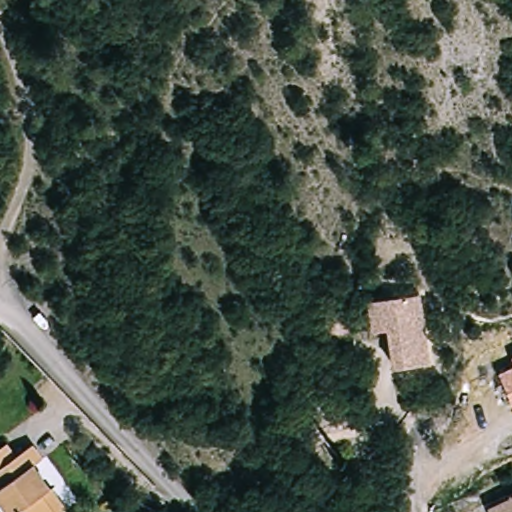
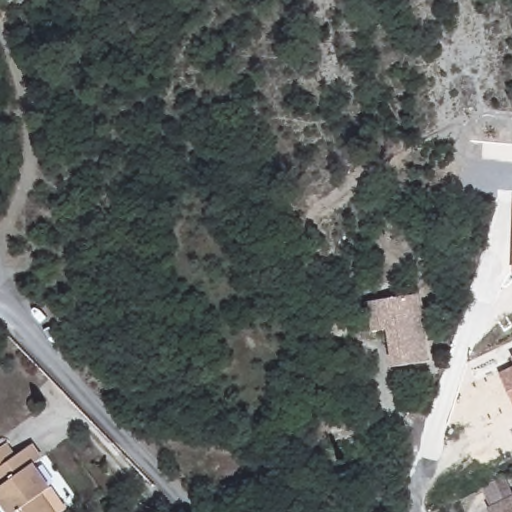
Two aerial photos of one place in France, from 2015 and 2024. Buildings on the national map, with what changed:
unchanged [(436,367),(399,375),(390,333),(375,336),(369,306),(385,303),(421,296),(436,367)]
unchanged [(512,358),(512,359),(511,358),(512,358)]
unchanged [(512,367),(512,402),(499,373),(512,367)]
unchanged [(0,442),(8,455),(28,441),(40,459),(31,465),(43,483),(62,512),(7,512),(0,502),(0,443),(0,442)]
unchanged [(512,496),(512,512),(493,512),(490,507),(512,496)]

